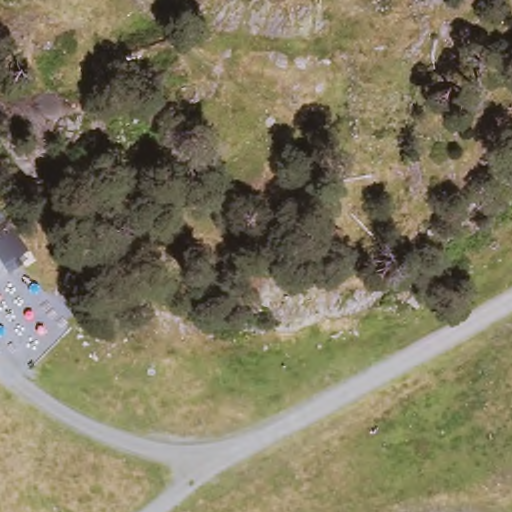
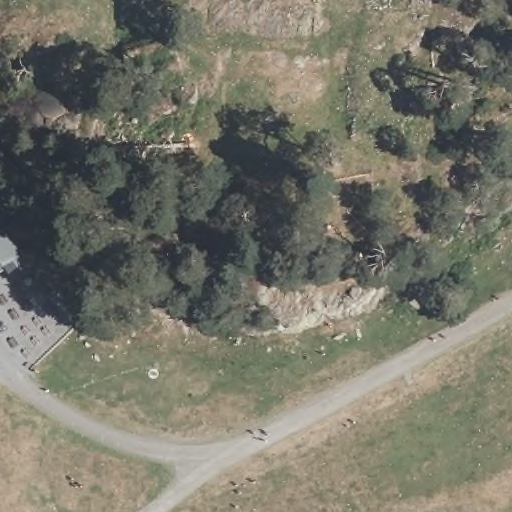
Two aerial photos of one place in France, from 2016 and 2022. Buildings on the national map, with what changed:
unchanged [(37,249),(0,276),(0,198),(37,249)]

